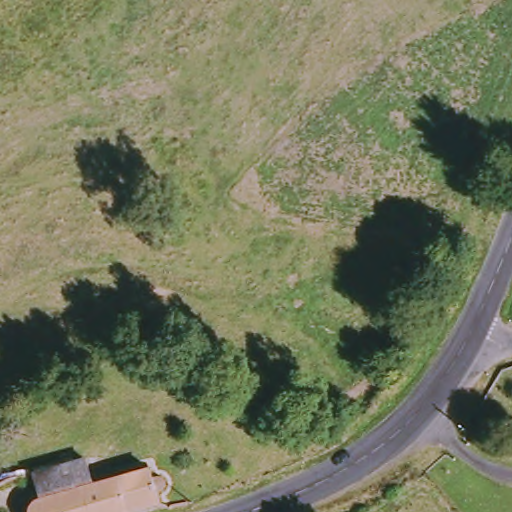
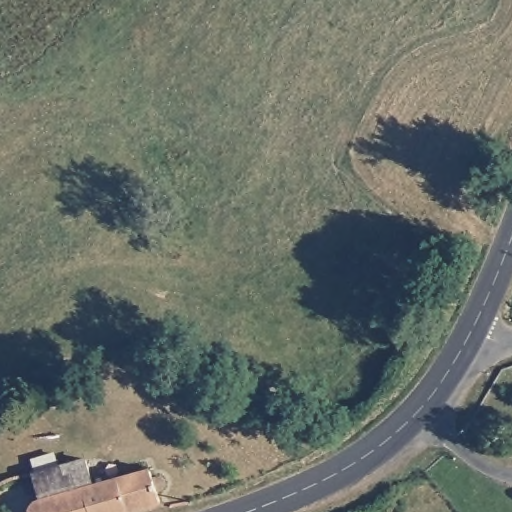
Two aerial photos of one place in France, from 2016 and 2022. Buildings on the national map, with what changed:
unchanged [(97,490),(152,473),(154,483),(166,482),(169,487),(168,494),(160,496),(163,508),(151,512),(37,512),(44,505),(38,481),(90,465),(97,490)]

